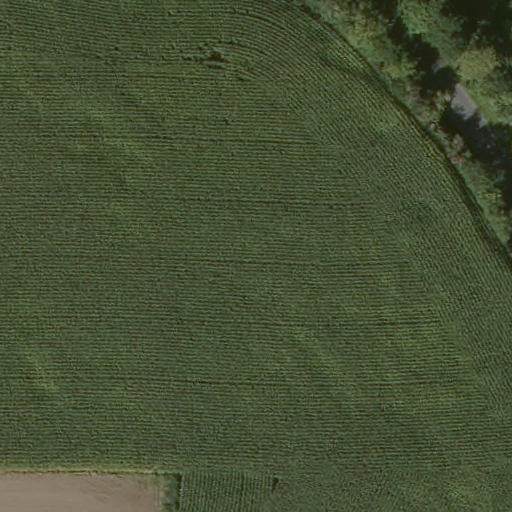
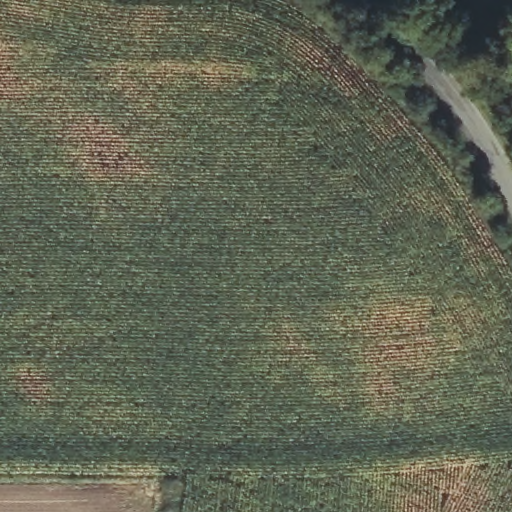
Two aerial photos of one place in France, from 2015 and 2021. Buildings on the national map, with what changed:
[]

